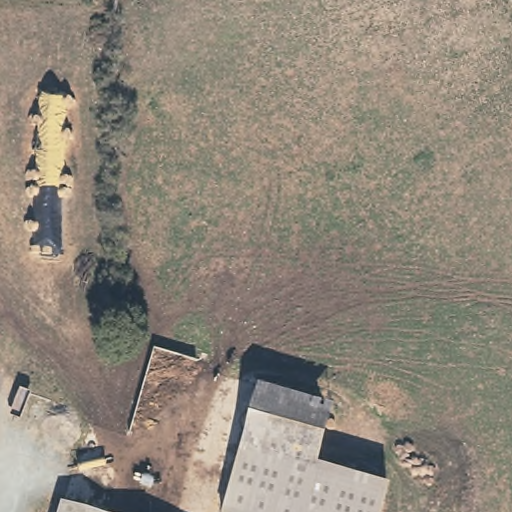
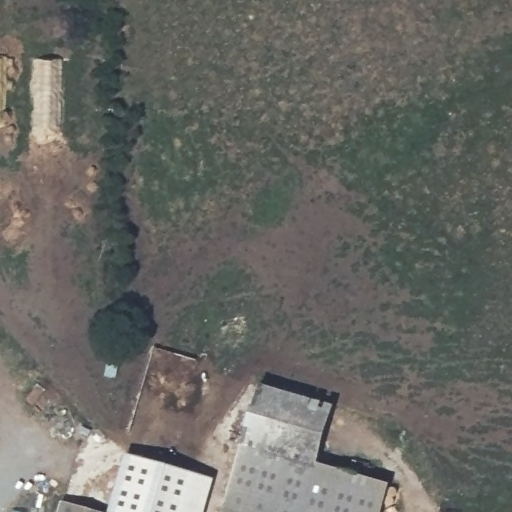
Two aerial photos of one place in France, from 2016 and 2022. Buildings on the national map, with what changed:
unchanged [(333,411),(317,463),(390,486),(381,512),(229,512),(221,510),(261,387),(333,411)]
new [(112,511),(129,456),(210,477),(201,512),(117,512),(112,511)]
unchanged [(101,512),(57,512),(60,501),(101,512)]
unchanged [(112,511),(117,512),(112,512),(112,511)]

